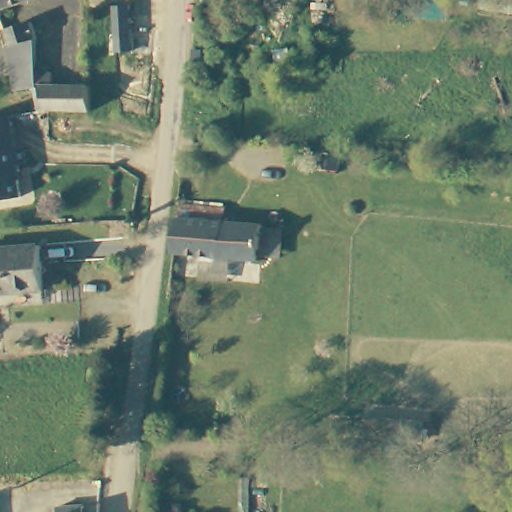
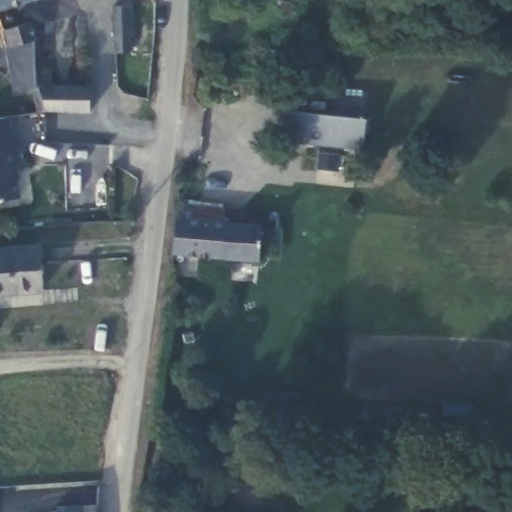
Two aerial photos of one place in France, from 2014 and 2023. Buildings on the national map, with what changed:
unchanged [(0,0),(33,0),(0,11),(0,0)]
unchanged [(129,4),(131,53),(112,53),(111,5),(129,4)]
unchanged [(43,85),(26,89),(17,43),(10,44),(5,27),(32,20),(36,37),(34,37),(40,72),(54,73),(54,84),(89,85),(90,108),(86,108),(48,108),(44,89),(43,85)]
new [(367,118),(365,149),(281,141),(285,109),(367,118)]
unchanged [(15,151),(0,154),(0,121),(9,119),(15,151)]
unchanged [(24,150),(25,166),(18,168),(16,184),(19,200),(0,204),(0,154),(15,151),(24,150)]
unchanged [(179,218),(181,218),(182,205),(227,210),(227,223),(265,227),(262,262),(176,253),(179,218)]
unchanged [(0,254),(39,250),(43,291),(0,295),(0,254)]
unchanged [(411,412),(412,429),(384,429),(357,431),(356,414),(383,413),(411,412)]
unchanged [(64,509),(86,507),(86,512),(64,512),(64,509)]

